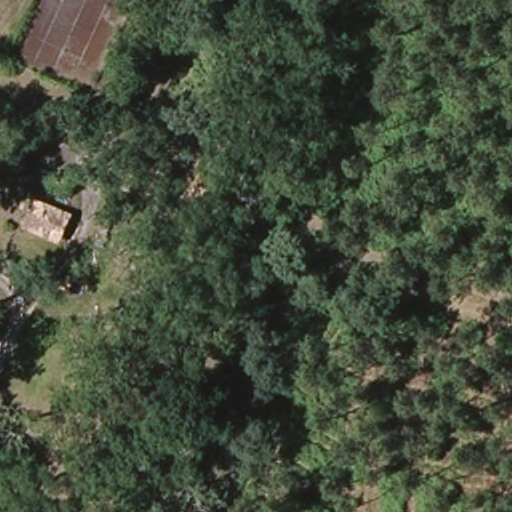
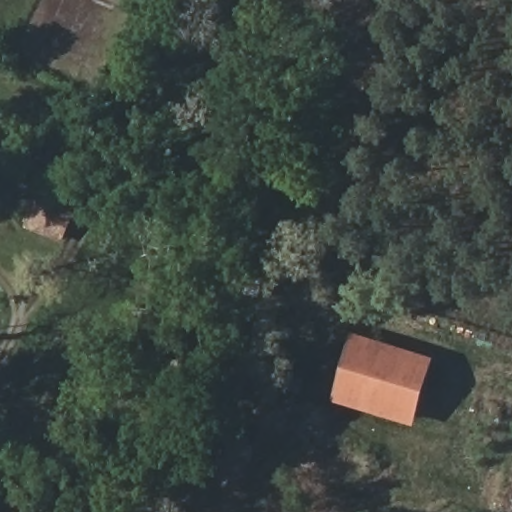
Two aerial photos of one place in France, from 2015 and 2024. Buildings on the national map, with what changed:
unchanged [(57,236),(21,221),(29,202),(67,219),(57,236)]
new [(352,333),(433,357),(415,427),(332,402),(352,333)]

